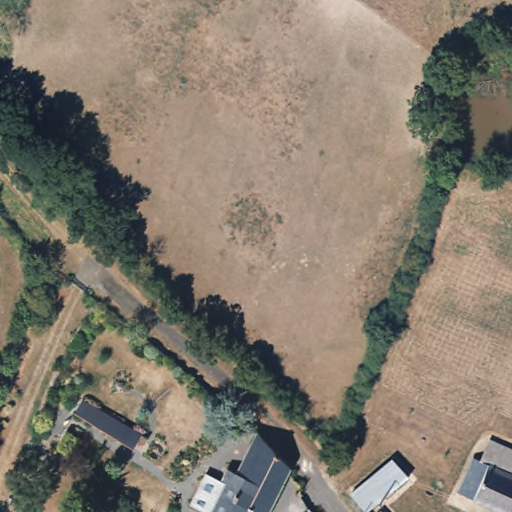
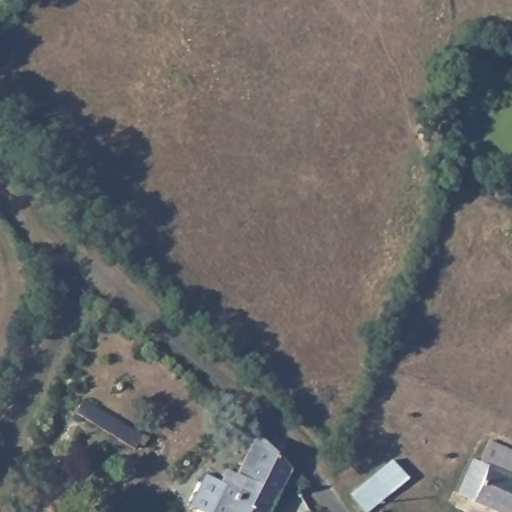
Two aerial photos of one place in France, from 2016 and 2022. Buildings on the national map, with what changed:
unchanged [(149,437),(145,443),(140,440),(135,447),(76,414),(84,401),(149,437)]
unchanged [(290,469),(289,472),(269,512),(203,512),(205,508),(189,500),(205,465),(222,473),(225,467),(235,471),(252,436),(290,469)]
unchanged [(512,447),(512,512),(503,512),(459,493),(474,460),(480,463),(492,439),(512,447)]
unchanged [(373,472),(389,489),(366,509),(351,492),(373,472)]
unchanged [(388,512),(378,512),(383,507),(388,512)]

